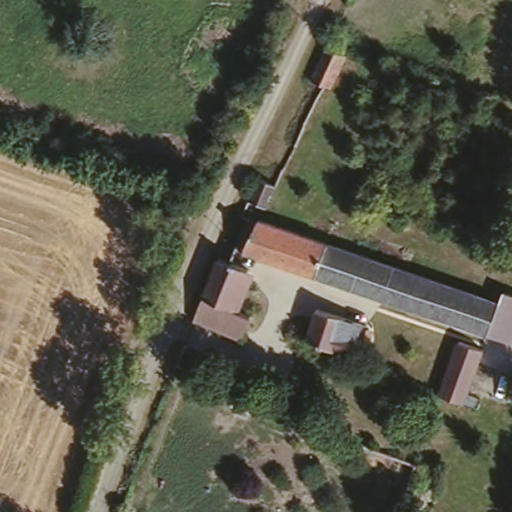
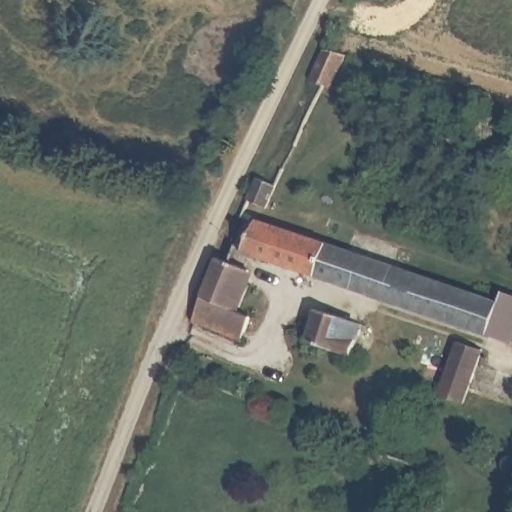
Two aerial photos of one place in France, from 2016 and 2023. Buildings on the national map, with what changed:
unchanged [(332,84),(325,81),(315,77),(327,47),(330,50),(345,54),(332,84)]
unchanged [(261,204),(244,199),(252,175),(270,182),(261,204)]
unchanged [(501,300),(505,290),(512,293),(512,342),(239,246),(250,216),(501,300)]
unchanged [(252,272),(235,315),(254,323),(246,342),(197,323),(223,260),(252,272)]
unchanged [(315,315),(319,307),(365,321),(355,354),(296,335),(305,311),(315,315)]
unchanged [(480,346),(462,402),(438,394),(457,337),(480,346)]

